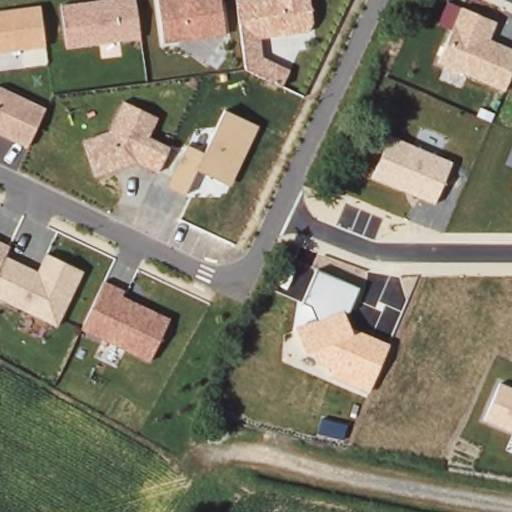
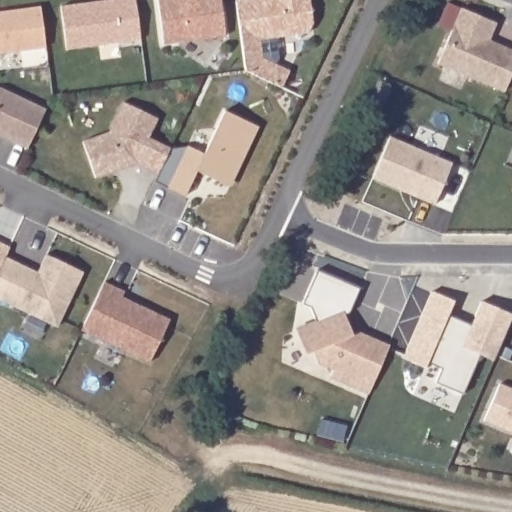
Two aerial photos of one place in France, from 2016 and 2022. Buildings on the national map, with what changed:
unchanged [(105,0),(136,0),(140,36),(68,48),(62,5),(105,0)]
unchanged [(222,0),(227,34),(163,42),(156,0),(222,0)]
unchanged [(312,0),(314,21),(307,34),(243,43),(236,0),(312,0)]
unchanged [(47,45),(0,53),(0,11),(43,5),(47,45)]
unchanged [(438,65),(460,7),(497,22),(489,41),(512,50),(512,75),(506,92),(438,65)]
unchanged [(283,89),(244,70),(243,43),(261,40),(263,57),(289,70),(283,89)]
unchanged [(45,108),(27,147),(0,136),(0,87),(2,86),(45,108)]
unchanged [(83,140),(109,132),(123,101),(158,116),(149,136),(170,146),(156,172),(135,163),(94,177),(83,140)]
unchanged [(230,186),(197,171),(185,195),(169,187),(189,145),(204,153),(225,110),(259,126),(230,186)]
unchanged [(434,205),(371,176),(388,134),(453,162),(434,205)]
unchanged [(4,257),(39,272),(48,252),(84,270),(58,325),(0,299),(0,243),(9,246),(4,257)]
unchanged [(297,326),(317,318),(313,305),(306,302),(319,270),(359,286),(344,315),(351,330),(386,343),(368,392),(329,378),(333,367),(319,362),(315,350),(307,353),(297,326)]
unchanged [(104,280),(129,291),(125,300),(168,320),(150,360),(80,327),(104,280)]
new [(437,380),(442,366),(428,359),(424,366),(402,357),(432,290),(455,298),(449,314),(471,323),(481,299),(512,312),(512,316),(494,361),(478,354),(463,392),(437,380)]
unchanged [(482,420),(499,381),(512,387),(512,433),(482,420)]

